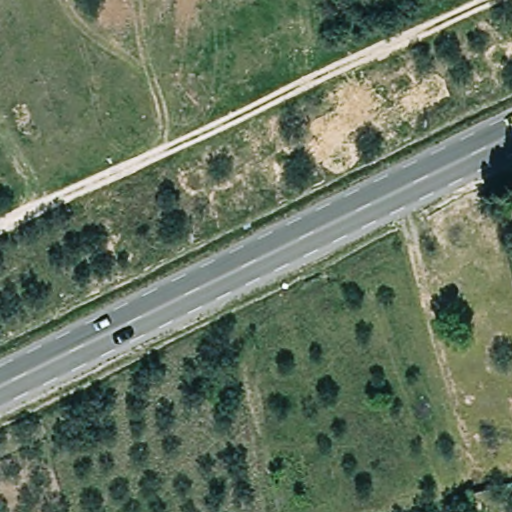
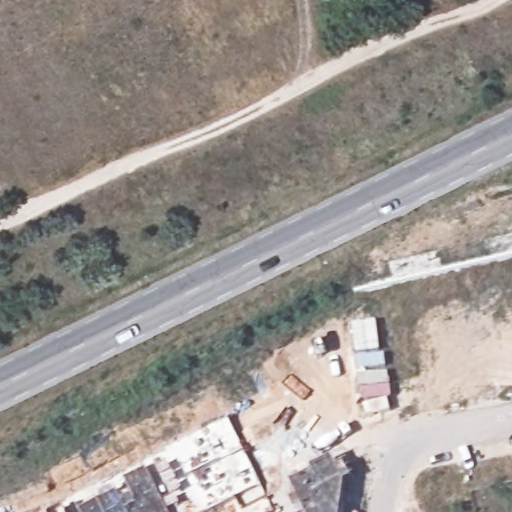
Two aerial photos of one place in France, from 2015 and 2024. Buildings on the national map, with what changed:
new [(143,451),(221,407),(275,512),(50,512),(148,461),(143,451)]
new [(310,467),(332,455),(337,465),(344,461),(354,479),(345,484),(342,512),(304,512),(290,484),(311,471),(310,467)]

